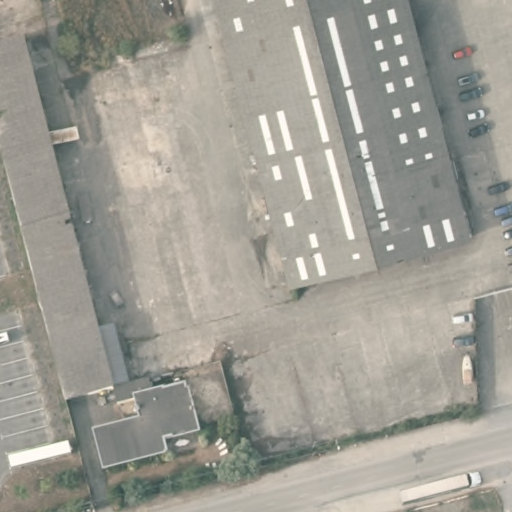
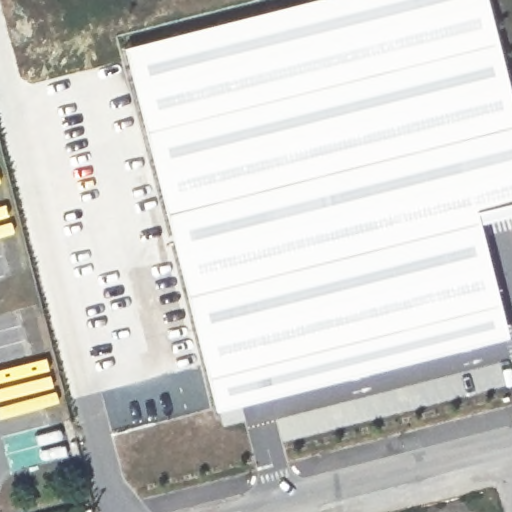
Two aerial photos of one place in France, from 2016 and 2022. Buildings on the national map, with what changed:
new [(512,199),(475,209),(504,332),(215,407),(122,45),(305,0),(488,0),(512,98),(512,199)]
demolished [(474,236),(292,284),(228,36),(358,2),(401,172),(455,158),(474,236)]
demolished [(150,373),(154,386),(186,378),(199,427),(165,436),(168,447),(104,464),(95,429),(141,417),(136,398),(120,401),(115,382),(150,373)]
demolished [(473,512),(498,505),(500,512),(473,512)]

